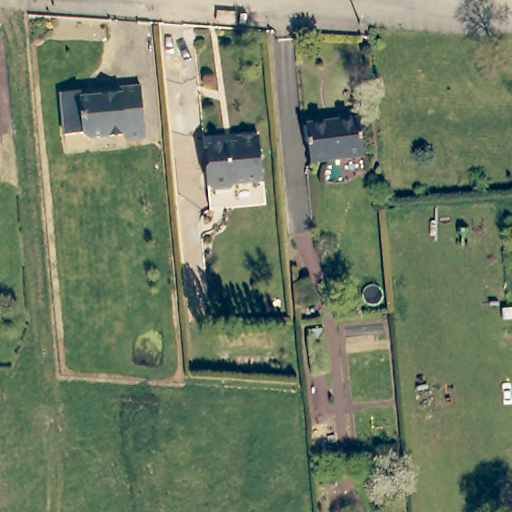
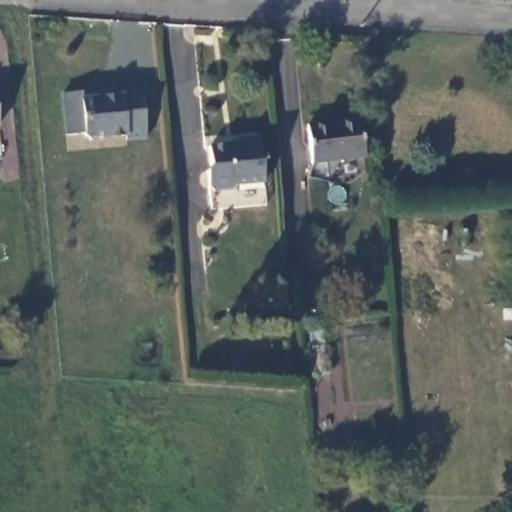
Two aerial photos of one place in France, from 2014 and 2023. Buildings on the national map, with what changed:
unchanged [(57,97),(68,96),(137,90),(143,140),(122,142),(121,135),(110,136),(105,141),(87,143),(78,135),(71,136),(62,136),(57,97)]
unchanged [(301,125),(322,122),(356,118),(360,156),(325,160),(305,162),(301,125)]
unchanged [(199,178),(198,160),(203,155),(201,135),(234,132),(233,125),(254,123),(259,197),(201,201),(199,178)]

